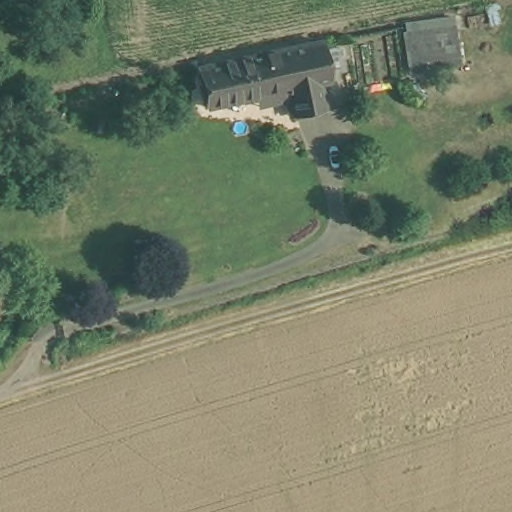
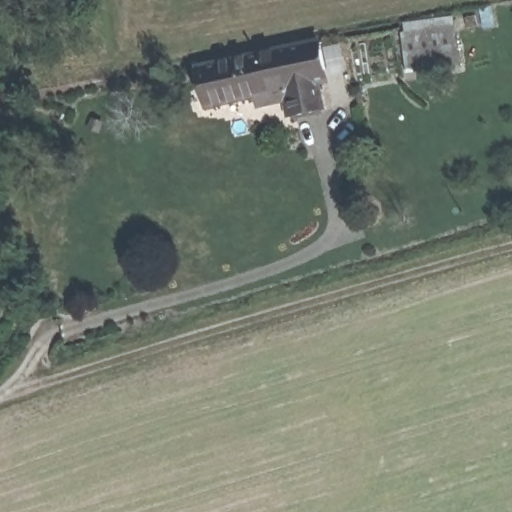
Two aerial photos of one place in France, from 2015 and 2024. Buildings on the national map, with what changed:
unchanged [(401,27),(455,17),(463,65),(409,72),(401,27)]
unchanged [(197,64),(262,51),(313,39),(327,110),(287,117),(285,101),(262,106),(261,96),(207,111),(197,64)]

